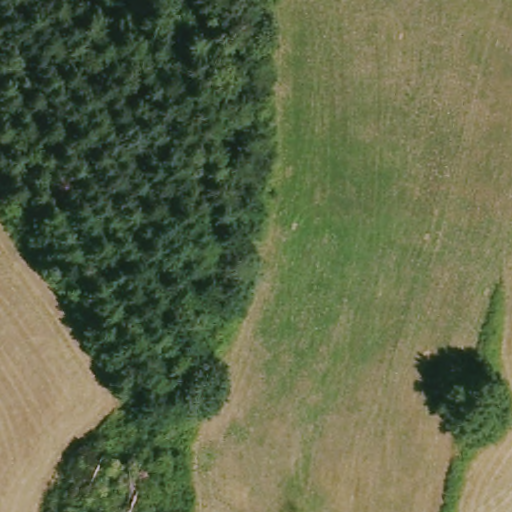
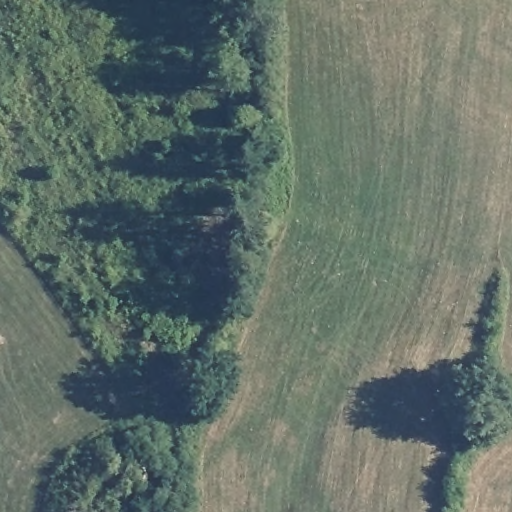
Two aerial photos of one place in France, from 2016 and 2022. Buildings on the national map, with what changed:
unchanged [(154,471),(143,506),(91,487),(105,455),(154,471)]

